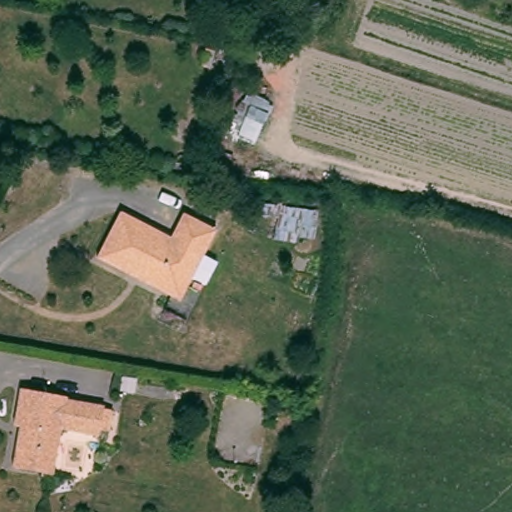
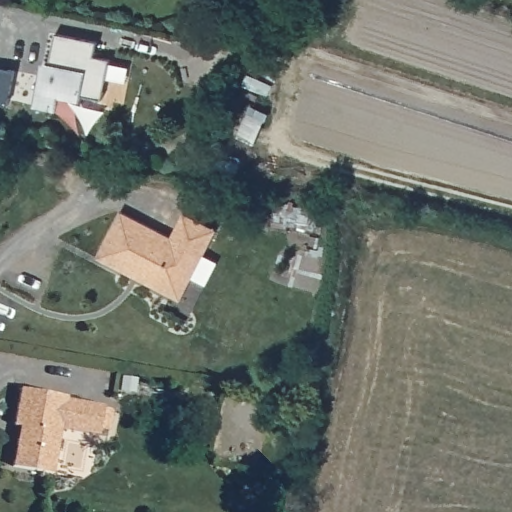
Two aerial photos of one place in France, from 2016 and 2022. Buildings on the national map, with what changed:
new [(48,72),(49,64),(55,33),(98,42),(94,56),(110,59),(103,99),(81,95),(80,100),(59,96),(56,110),(34,105),(41,70),(48,72)]
new [(8,104),(0,102),(0,66),(14,70),(8,104)]
unchanged [(177,290),(148,275),(134,269),(103,252),(126,206),(177,232),(189,208),(222,225),(209,250),(186,295),(177,290)]
unchanged [(15,425),(21,388),(68,396),(67,399),(104,406),(104,408),(113,410),(109,436),(99,435),(61,428),(54,474),(14,467),(19,439),(20,426),(15,425)]

